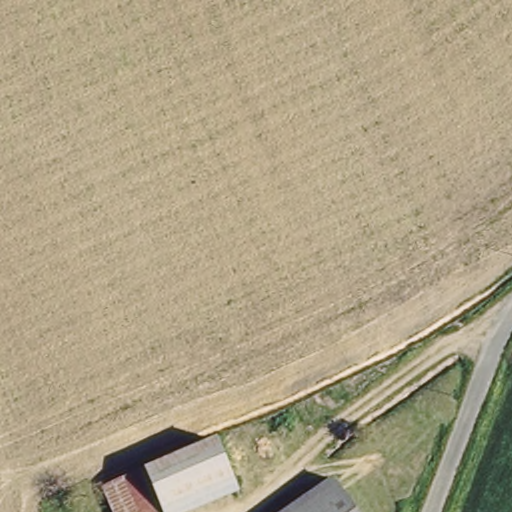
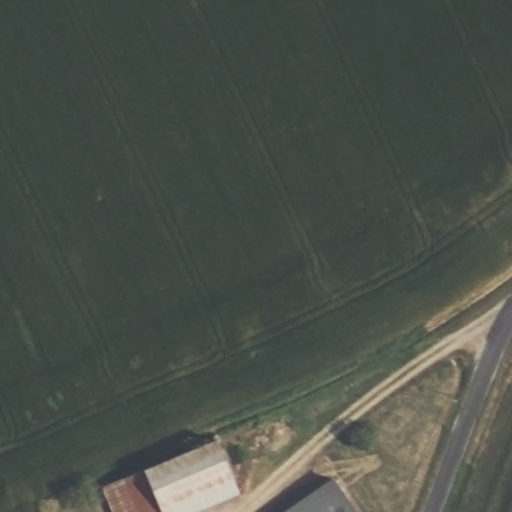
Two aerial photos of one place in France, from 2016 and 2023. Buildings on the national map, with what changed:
unchanged [(237,492),(190,512),(114,512),(104,488),(216,441),(237,492)]
unchanged [(348,512),(286,512),(329,483),(348,512)]

